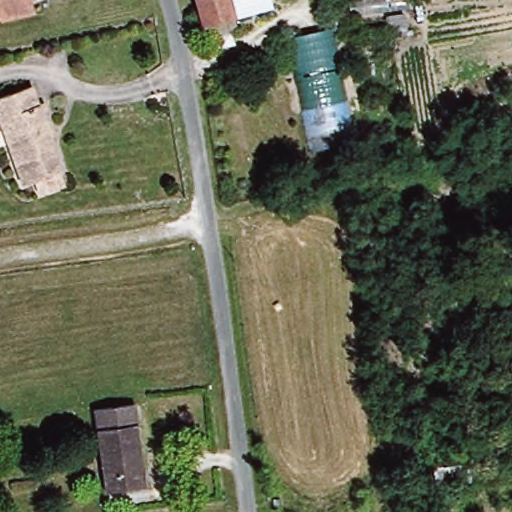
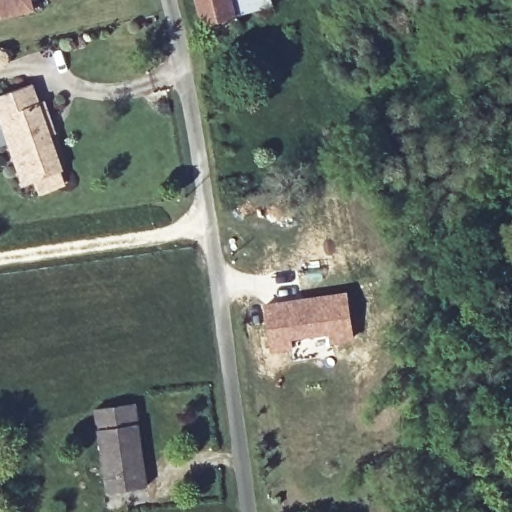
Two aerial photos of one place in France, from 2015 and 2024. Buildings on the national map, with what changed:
unchanged [(0,13),(0,0),(33,0),(35,7),(4,15),(0,13)]
unchanged [(267,16),(263,8),(243,14),(206,24),(201,0),(278,0),(281,14),(267,16)]
demolished [(359,142),(315,147),(296,34),(337,28),(359,142)]
unchanged [(61,145),(70,176),(63,178),(66,189),(42,196),(38,183),(25,187),(0,98),(45,86),(51,107),(58,105),(64,125),(55,128),(61,145)]
new [(347,290),(354,341),(329,345),(327,334),(291,340),(292,350),(266,354),(261,302),(347,290)]
unchanged [(155,485),(111,490),(100,409),(142,401),(155,485)]

